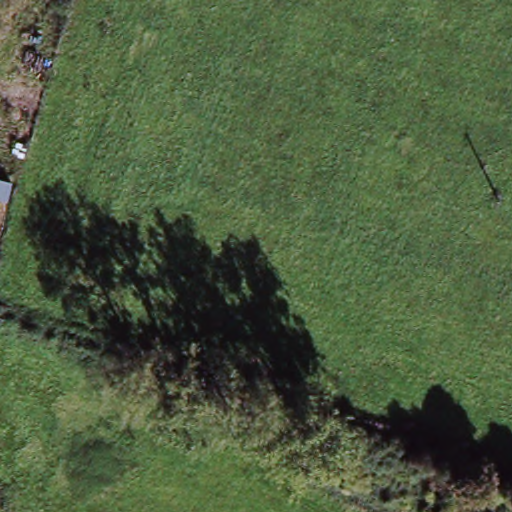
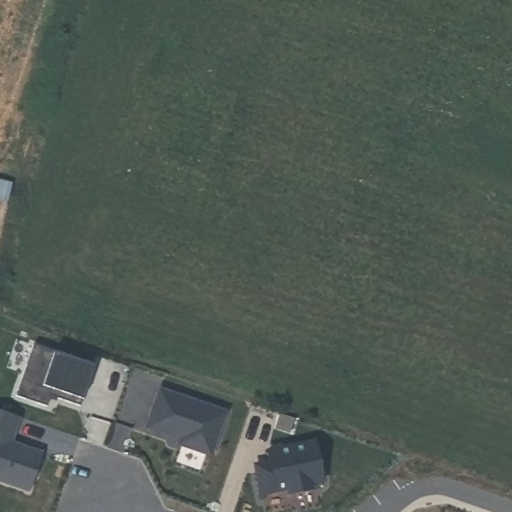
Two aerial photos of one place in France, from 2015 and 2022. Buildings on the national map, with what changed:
new [(47,395),(43,405),(13,395),(30,344),(91,365),(77,405),(47,395)]
new [(157,392),(222,414),(208,456),(177,446),(178,441),(144,430),(157,392)]
new [(16,416),(11,433),(6,431),(3,440),(38,452),(25,490),(0,482),(0,411),(16,416)]
new [(267,469),(264,452),(311,443),(318,483),(306,486),(307,490),(285,495),(284,490),(257,495),(253,472),(267,469)]

